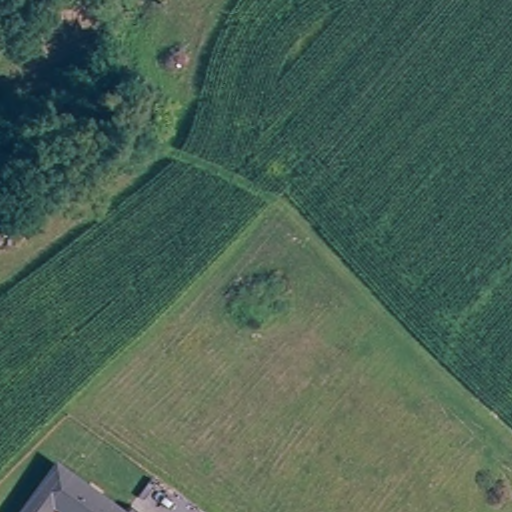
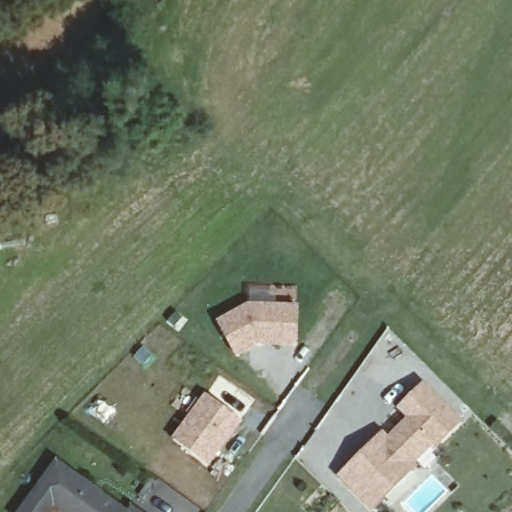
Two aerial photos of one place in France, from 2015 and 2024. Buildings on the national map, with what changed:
new [(236,316),(283,312),(286,350),(246,351),(226,364),(207,334),(236,316)]
new [(437,448),(433,444),(416,464),(419,466),(372,512),(369,512),(337,477),(383,433),(388,438),(408,418),(398,409),(425,382),(463,423),(437,448)]
new [(198,404),(232,427),(202,474),(167,451),(198,404)]
unchanged [(64,512),(53,504),(48,512),(24,512),(30,503),(55,465),(124,512),(64,512)]
unchanged [(143,512),(126,512),(131,504),(143,512)]

